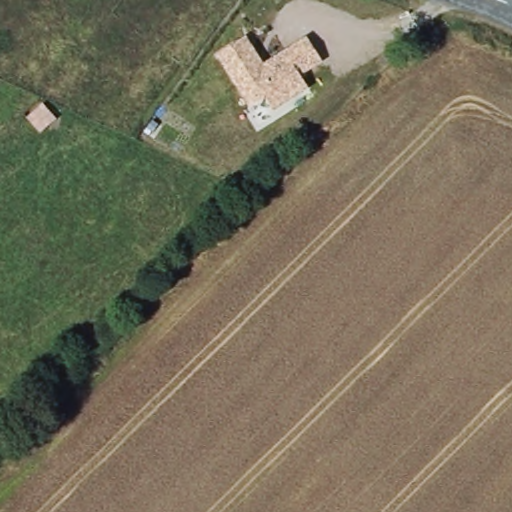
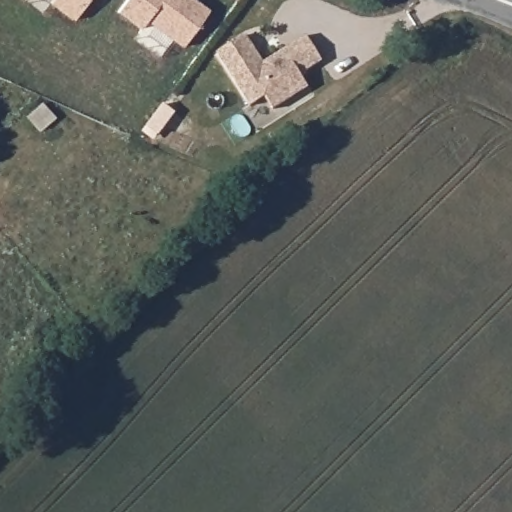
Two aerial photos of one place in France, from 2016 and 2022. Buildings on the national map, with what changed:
new [(75,22),(51,4),(54,0),(90,0),(75,22)]
new [(211,10),(184,48),(147,22),(141,30),(119,14),(128,0),(197,0),(211,10)]
unchanged [(300,73),(309,87),(272,109),(263,95),(248,106),(217,54),(246,36),(263,62),(307,35),(322,60),(300,73)]

